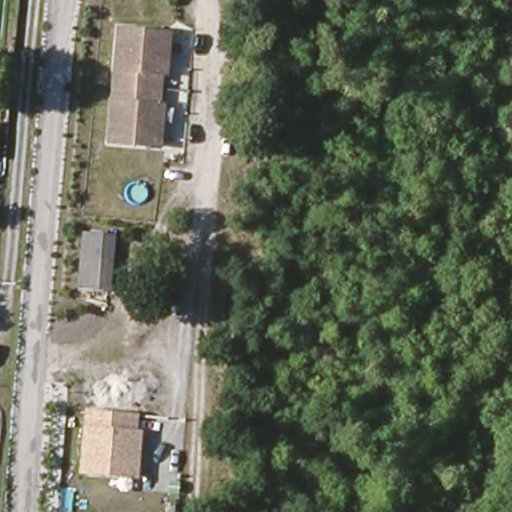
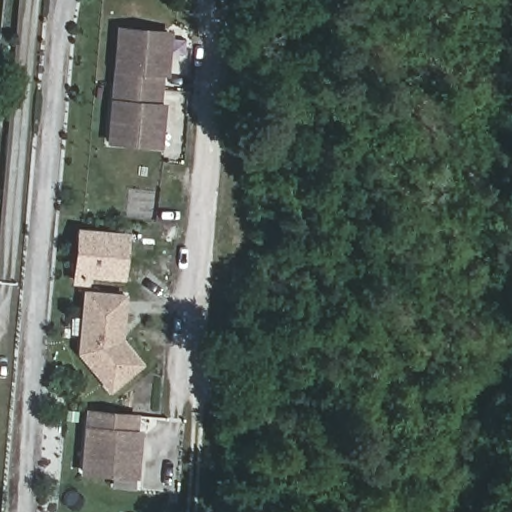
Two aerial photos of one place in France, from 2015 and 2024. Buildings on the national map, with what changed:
unchanged [(158,144),(110,140),(119,27),(166,31),(163,74),(161,104),(158,144)]
new [(81,289),(84,261),(85,234),(118,236),(115,262),(113,292),(128,293),(123,340),(144,364),(111,392),(78,353),(84,289),(81,289)]
demolished [(81,289),(84,261),(85,234),(118,236),(115,262),(113,292),(81,289)]
unchanged [(133,432),(138,432),(134,475),(82,470),(88,411),(135,415),(133,432)]

